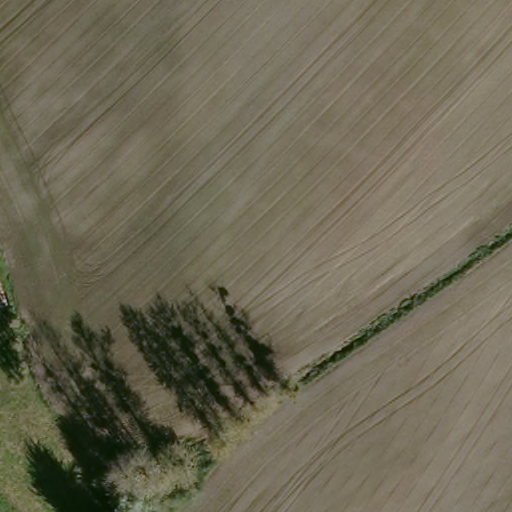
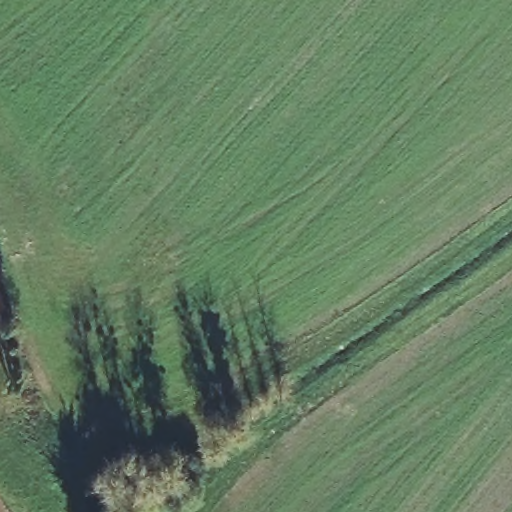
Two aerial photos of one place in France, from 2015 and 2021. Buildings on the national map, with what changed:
unchanged [(0,310),(0,281),(2,289),(8,307),(0,310)]

